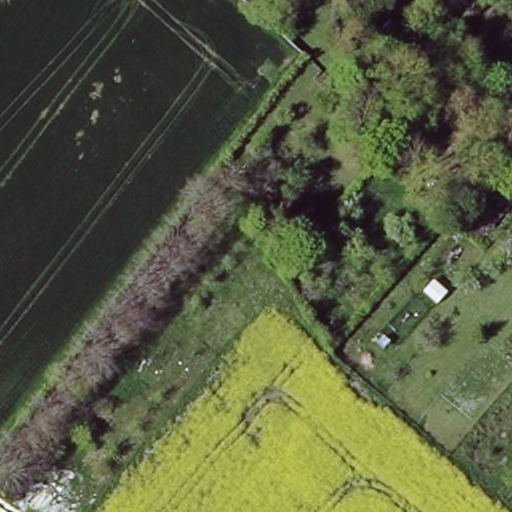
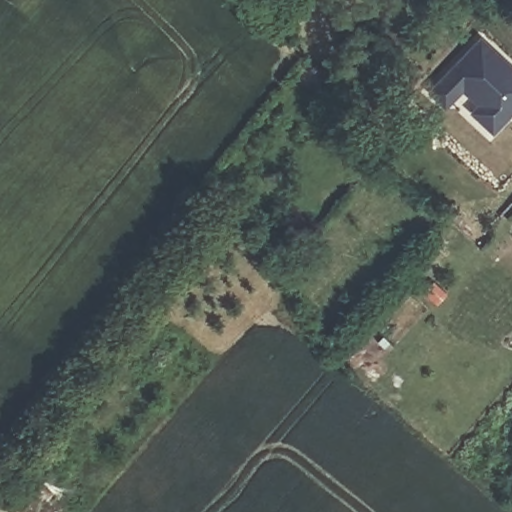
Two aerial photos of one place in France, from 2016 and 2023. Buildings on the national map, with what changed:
new [(512,113),(492,135),(470,112),(477,105),(462,91),(446,108),(428,89),(480,35),(512,64),(512,113)]
unchanged [(47,480),(27,503),(5,486),(26,465),(47,480)]

